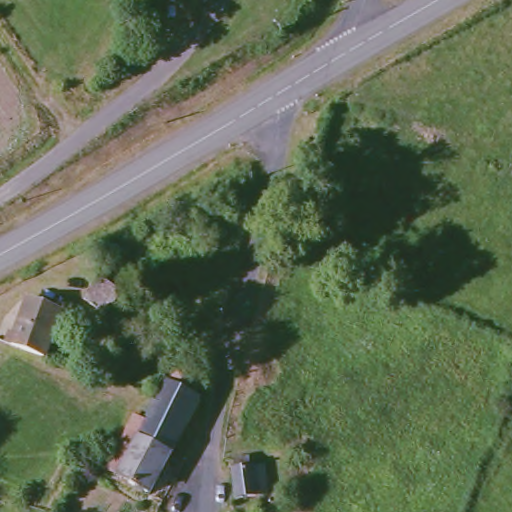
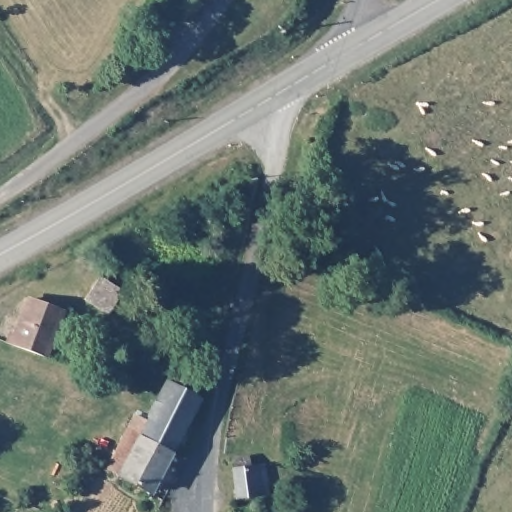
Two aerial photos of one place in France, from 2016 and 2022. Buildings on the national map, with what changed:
unchanged [(121,298),(105,321),(81,303),(100,282),(121,298)]
unchanged [(12,347),(28,300),(65,313),(49,360),(12,347)]
unchanged [(146,421),(158,400),(171,378),(178,365),(208,383),(202,395),(206,397),(153,489),(110,465),(136,417),(146,421)]
unchanged [(235,501),(231,463),(242,462),(242,471),(258,470),(261,500),(235,501)]

